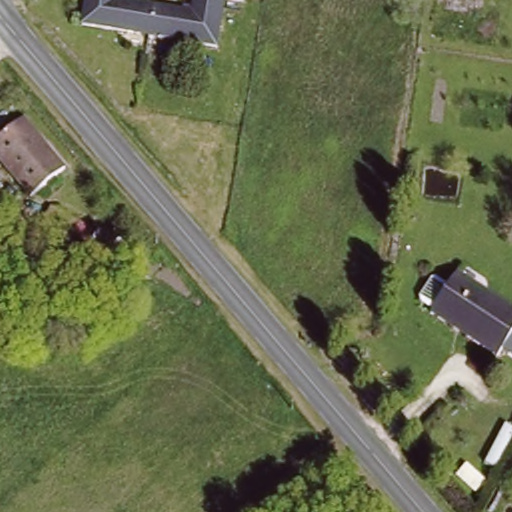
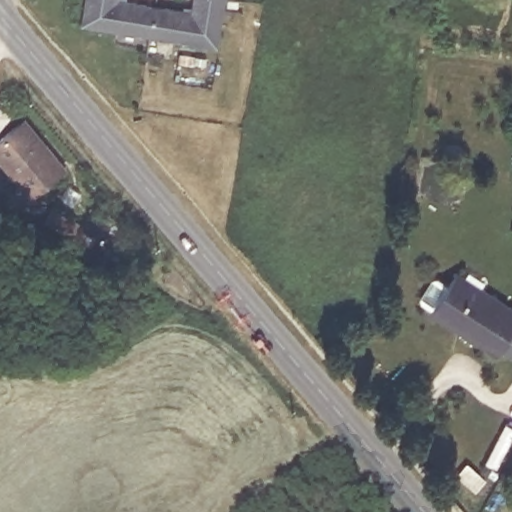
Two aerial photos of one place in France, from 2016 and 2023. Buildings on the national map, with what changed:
unchanged [(90,22),(93,0),(145,0),(163,3),(196,9),(197,0),(228,0),(220,44),(159,34),(90,22)]
unchanged [(33,195),(0,160),(0,142),(17,126),(22,121),(43,144),(65,165),(33,195)]
unchanged [(60,213),(87,227),(79,244),(52,229),(60,213)]
unchanged [(512,332),(496,356),(428,312),(455,270),(512,307),(512,332)]

